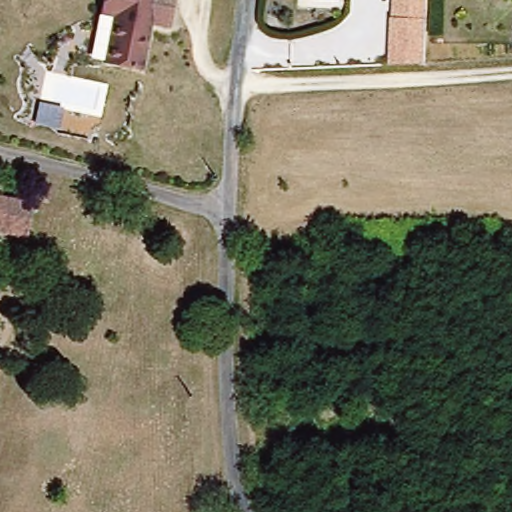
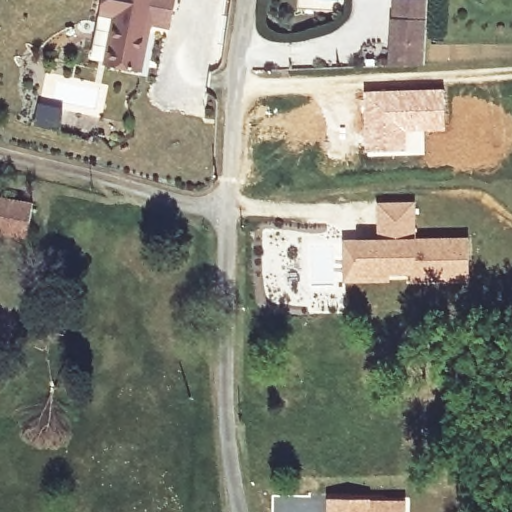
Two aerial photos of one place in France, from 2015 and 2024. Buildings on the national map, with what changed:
unchanged [(144,72),(108,65),(116,17),(103,15),(105,0),(178,0),(173,28),(153,25),(144,72)]
unchanged [(423,66),(390,65),(392,0),(425,0),(423,66)]
new [(444,86),(446,129),(408,131),(409,151),(366,153),(363,89),(444,86)]
unchanged [(0,231),(0,197),(34,203),(28,235),(0,231)]
new [(379,240),(378,231),(378,204),(430,202),(431,257),(468,256),(468,277),(413,278),(412,271),(387,272),(388,279),(344,280),(343,241),(358,240),(379,240)]
new [(369,499),(369,502),(406,501),(406,512),(329,512),(329,499),(369,499)]

